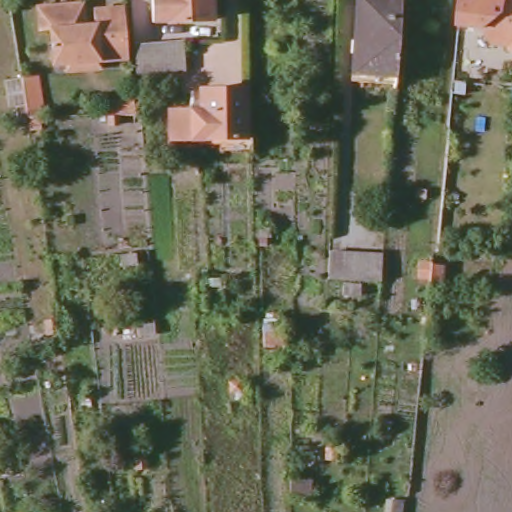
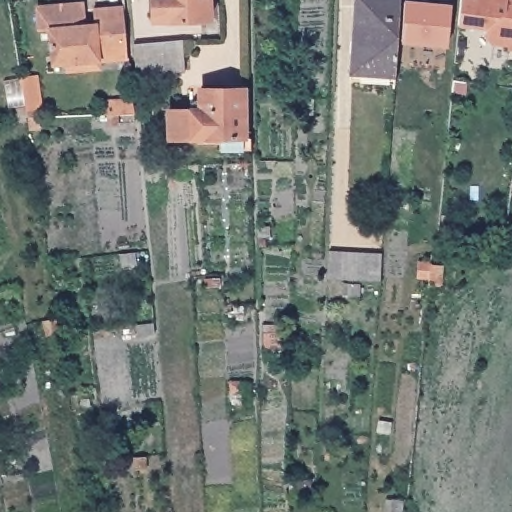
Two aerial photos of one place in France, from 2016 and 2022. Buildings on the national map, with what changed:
unchanged [(209,17),(152,20),(151,0),(208,0),(209,17)]
unchanged [(394,66),(349,63),(354,0),(398,0),(394,66)]
new [(449,44),(402,40),(405,0),(452,0),(449,44)]
unchanged [(509,52),(510,48),(493,46),(483,30),(460,25),(463,0),(512,0),(512,52),(509,52)]
unchanged [(83,22),(93,21),(91,9),(123,6),(128,57),(95,60),(80,61),(76,55),(70,56),(64,64),(51,65),(48,29),(37,30),(34,5),(79,1),(83,22)]
unchanged [(182,68),(135,71),(132,41),(181,39),(182,68)]
unchanged [(46,127),(29,128),(23,86),(40,84),(46,127)]
unchanged [(246,145),(213,145),(213,133),(163,133),(163,105),(196,105),(196,85),(238,85),(238,105),(245,105),(246,145)]
unchanged [(133,116),(119,116),(108,117),(105,117),(103,101),(131,100),(133,116)]
unchanged [(379,281),(359,280),(326,279),(327,252),(360,254),(381,254),(379,281)]

